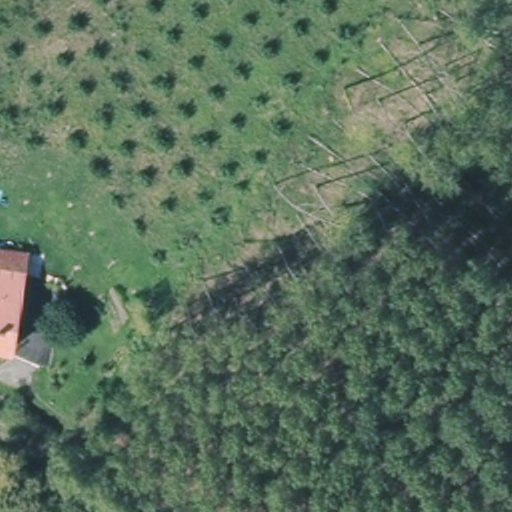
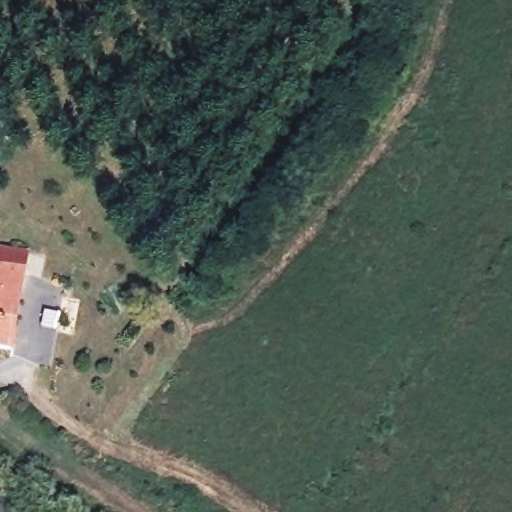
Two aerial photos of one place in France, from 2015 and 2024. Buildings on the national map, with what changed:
unchanged [(30,259),(20,338),(0,335),(0,255),(30,259)]

